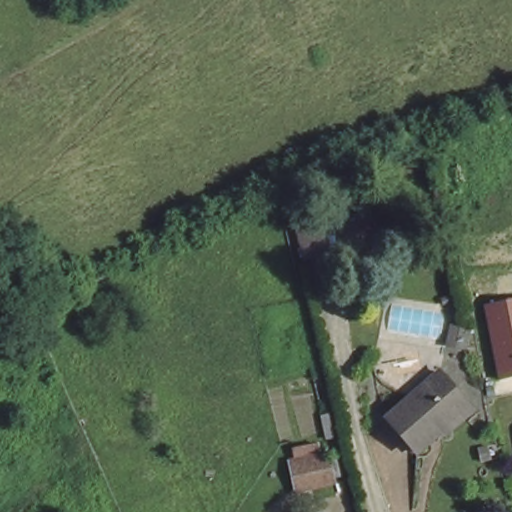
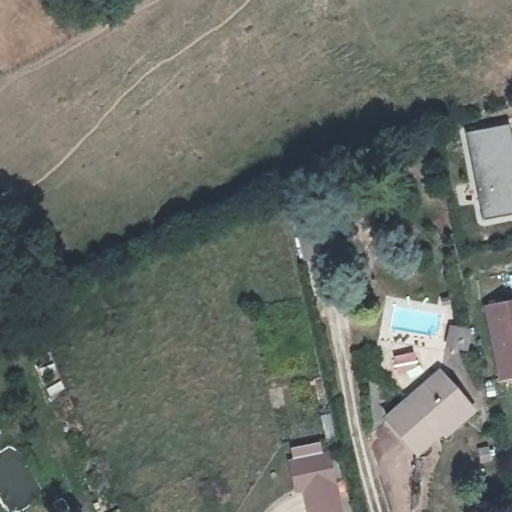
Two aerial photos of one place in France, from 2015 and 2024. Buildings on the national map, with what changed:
new [(509,124),(512,140),(512,215),(482,221),(465,132),(509,124)]
unchanged [(500,381),(486,306),(512,301),(512,379),(500,381)]
unchanged [(461,358),(445,355),(447,338),(465,341),(461,358)]
unchanged [(445,435),(441,431),(416,453),(385,418),(433,376),(463,411),(467,415),(445,435)]
unchanged [(313,454),(316,466),(326,463),(333,489),(294,498),(287,472),(293,470),(290,458),(313,454)]

